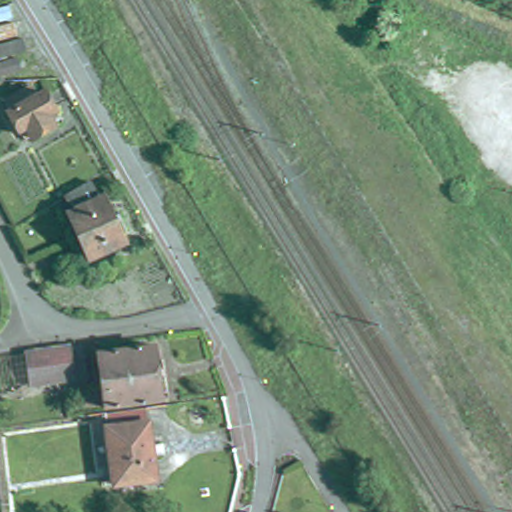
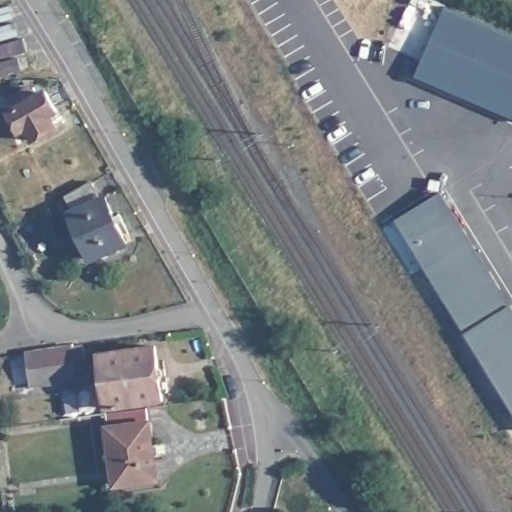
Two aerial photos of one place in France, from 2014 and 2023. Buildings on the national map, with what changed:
unchanged [(12,6),(15,19),(0,22),(0,9),(12,6)]
new [(512,34),(512,118),(416,76),(447,6),(512,34)]
unchanged [(17,24),(20,36),(0,40),(0,27),(17,24)]
unchanged [(25,39),(29,52),(0,59),(0,45),(25,39)]
unchanged [(19,59),(22,70),(0,77),(0,64),(19,59)]
unchanged [(27,133),(22,136),(10,117),(12,116),(5,105),(25,92),(34,91),(39,100),(47,95),(59,115),(50,120),(57,132),(35,145),(27,133)]
unchanged [(105,200),(127,247),(90,263),(70,217),(75,215),(67,201),(92,187),(102,201),(105,200)]
new [(458,317),(399,221),(443,194),(502,290),(512,305),(512,405),(468,333),(458,317)]
unchanged [(34,384),(28,352),(82,345),(88,376),(34,384)]
unchanged [(100,353),(157,345),(165,400),(109,407),(100,353)]
unchanged [(116,485),(107,412),(146,407),(158,480),(116,485)]

